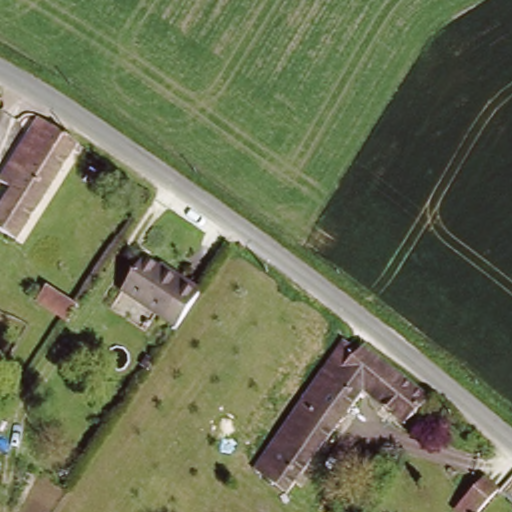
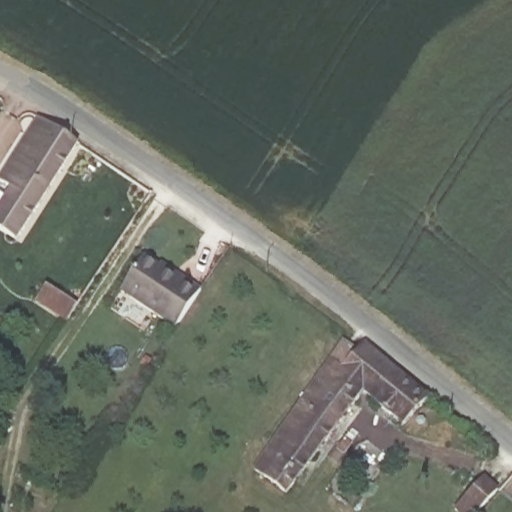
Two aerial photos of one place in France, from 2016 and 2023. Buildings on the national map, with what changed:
unchanged [(86,149),(22,243),(0,228),(0,222),(19,194),(5,185),(46,124),(86,149)]
unchanged [(177,335),(123,297),(145,266),(185,295),(188,289),(202,299),(177,335)]
unchanged [(69,322),(37,300),(48,283),(80,306),(69,322)]
unchanged [(428,407),(407,433),(365,401),(287,502),(257,480),(331,381),(329,379),(349,353),(361,362),(366,356),(428,407)]
unchanged [(501,491),(482,512),(461,512),(458,510),(486,479),(501,491)]

